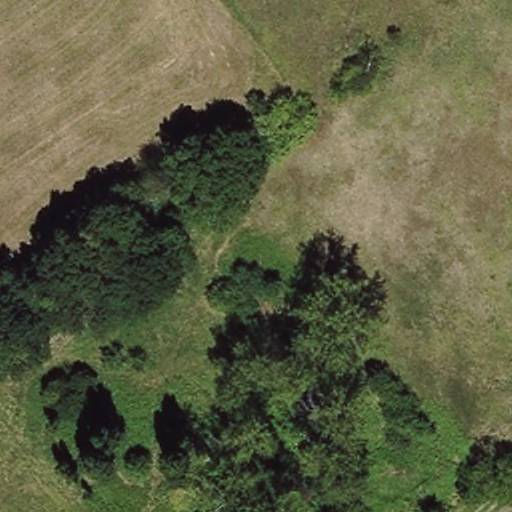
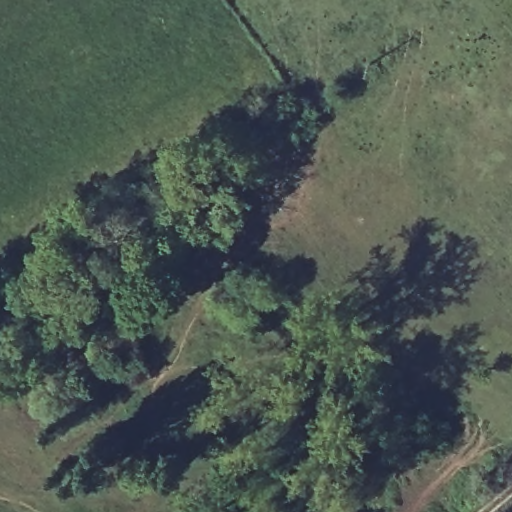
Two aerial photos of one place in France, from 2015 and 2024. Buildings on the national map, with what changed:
[]

